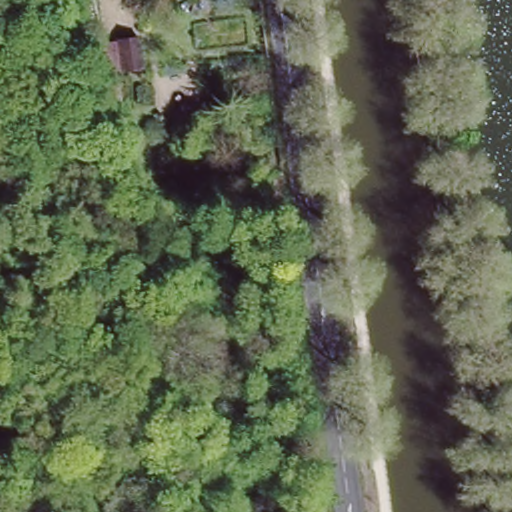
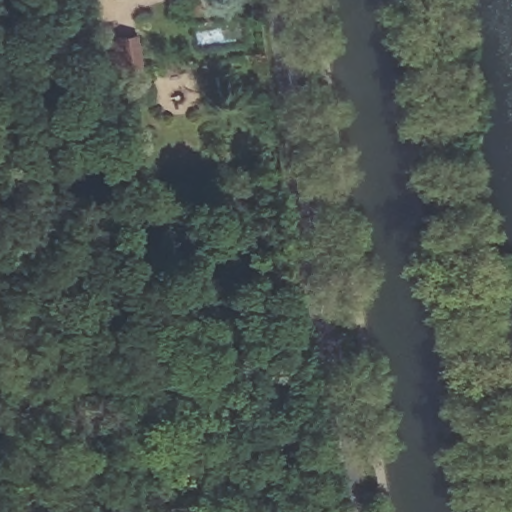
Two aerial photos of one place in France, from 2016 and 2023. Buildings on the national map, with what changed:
unchanged [(145,67),(100,73),(96,40),(140,33),(145,67)]

